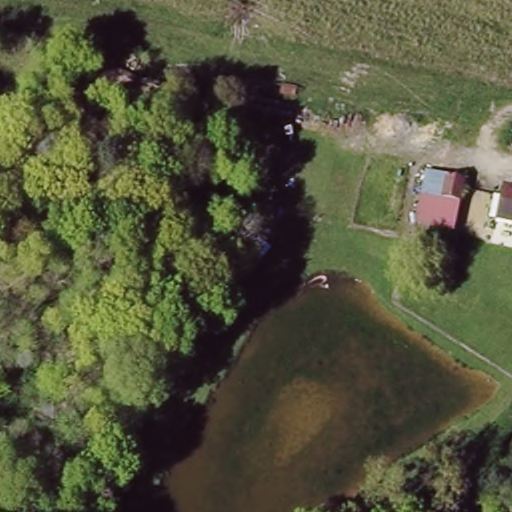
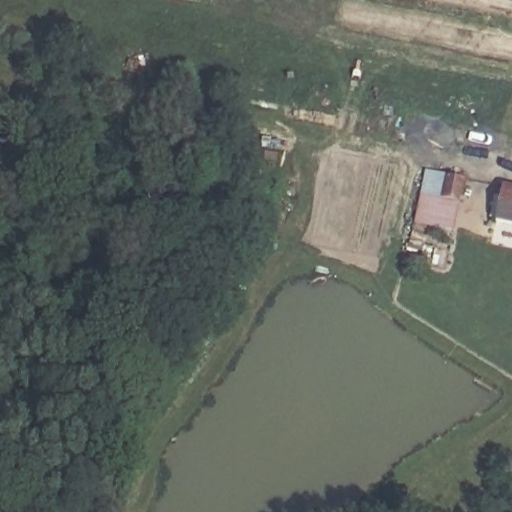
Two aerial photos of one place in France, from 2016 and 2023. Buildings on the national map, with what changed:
unchanged [(464,204),(459,235),(416,230),(422,197),(442,202),(445,176),(467,180),(464,204)]
unchanged [(493,223),(501,183),(512,186),(512,227),(493,223)]

